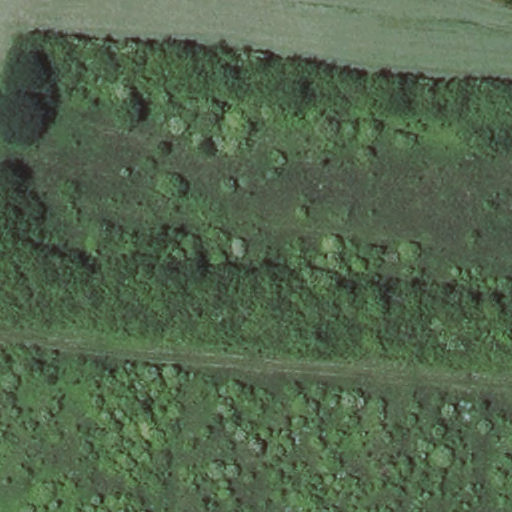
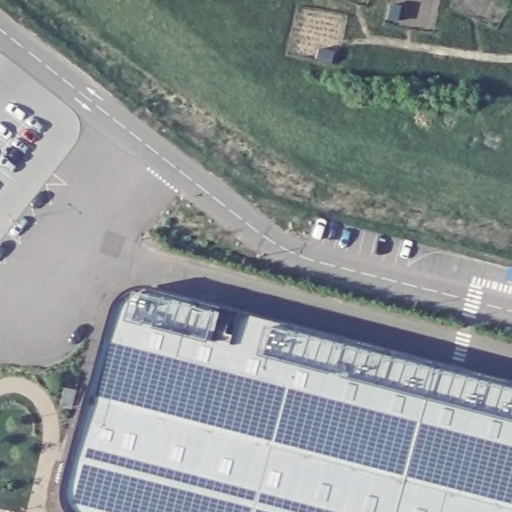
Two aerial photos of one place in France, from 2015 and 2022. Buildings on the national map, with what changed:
new [(66,493),(117,304),(124,296),(138,290),(148,291),(194,302),(512,385),(512,512),(67,512),(65,504),(66,493)]

